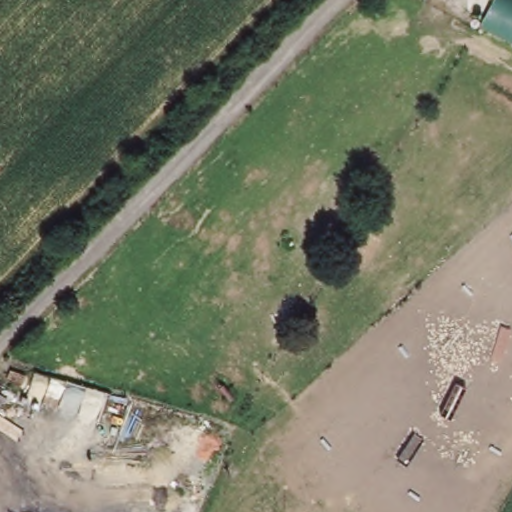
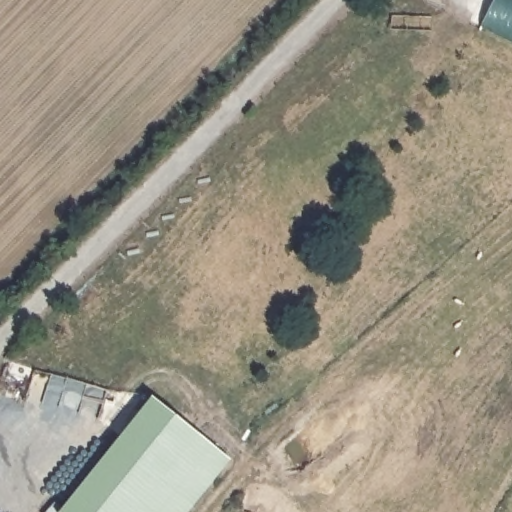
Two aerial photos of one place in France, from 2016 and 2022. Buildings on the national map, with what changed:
unchanged [(473,13),(485,18),(493,0),(512,0),(512,46),(468,25),(473,13)]
new [(228,455),(183,512),(58,512),(56,511),(150,393),(228,455)]

